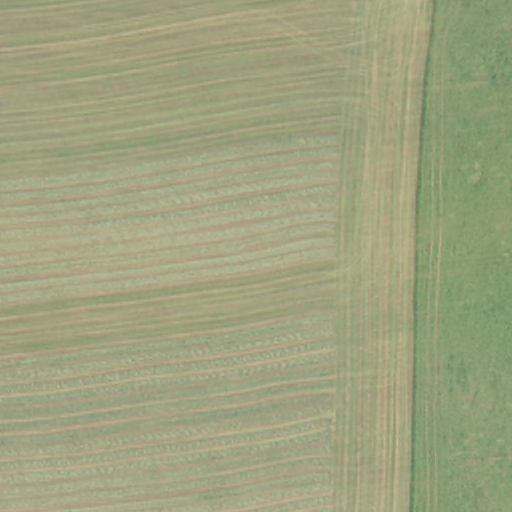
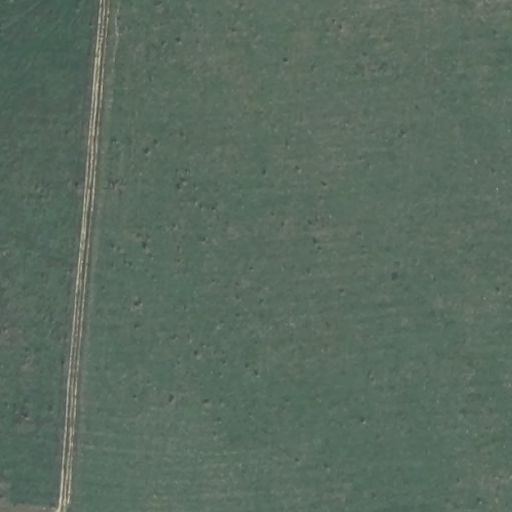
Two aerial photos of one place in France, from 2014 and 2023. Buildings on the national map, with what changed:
[]

